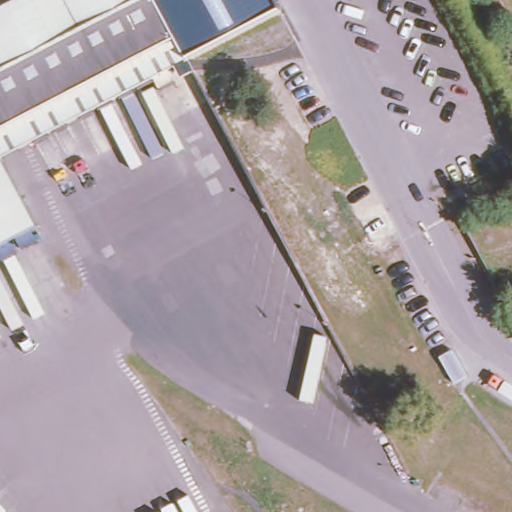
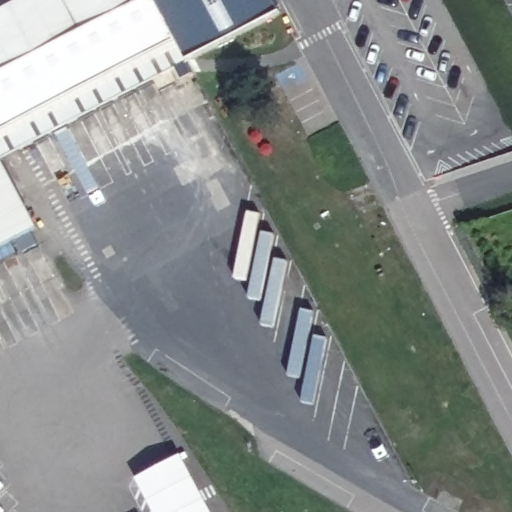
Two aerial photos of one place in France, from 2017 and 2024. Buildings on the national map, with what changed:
unchanged [(178,49),(0,145),(0,0),(272,0),(276,9),(178,49)]
unchanged [(33,230),(0,248),(0,164),(33,230)]
new [(210,512),(153,512),(134,477),(180,454),(210,512)]

